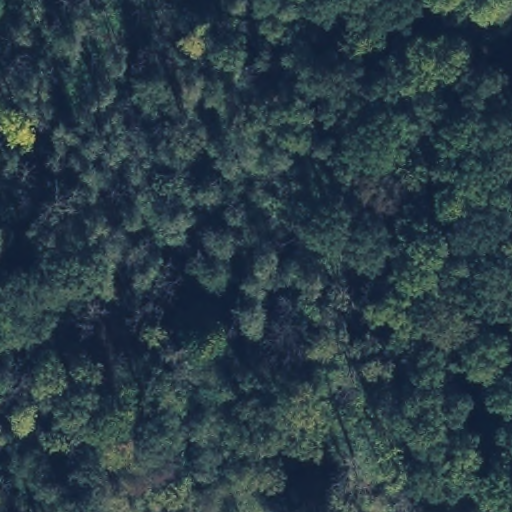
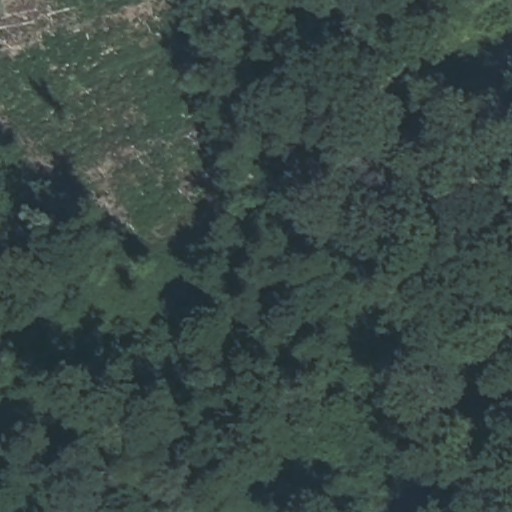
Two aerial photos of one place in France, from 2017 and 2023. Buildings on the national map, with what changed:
[]

